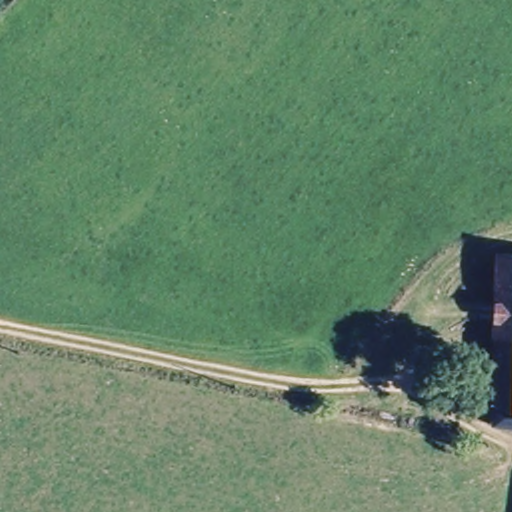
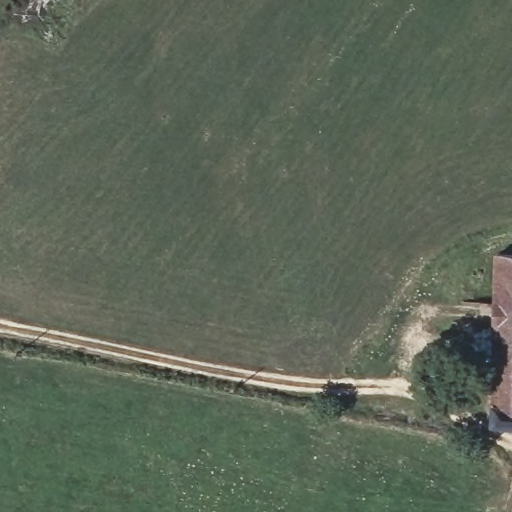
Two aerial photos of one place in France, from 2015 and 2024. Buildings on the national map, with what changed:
unchanged [(512,426),(493,425),(497,253),(512,254),(512,426)]

